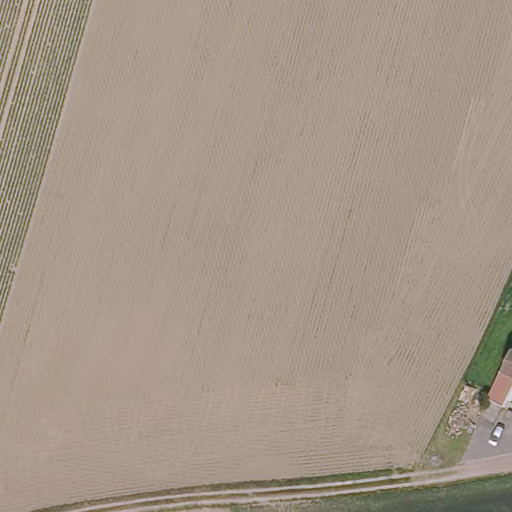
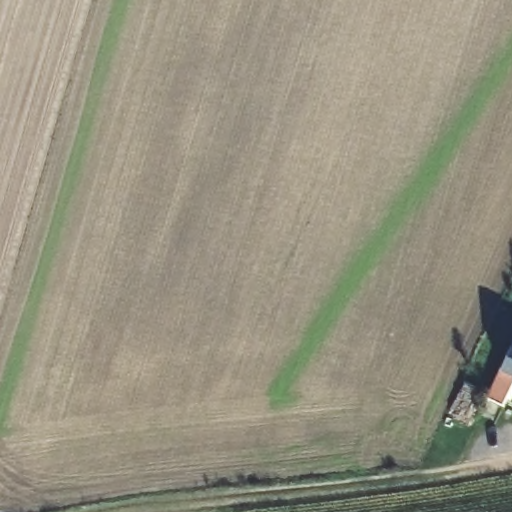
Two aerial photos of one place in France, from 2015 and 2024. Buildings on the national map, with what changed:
unchanged [(512,347),(512,377),(499,371),(511,346),(512,347)]

